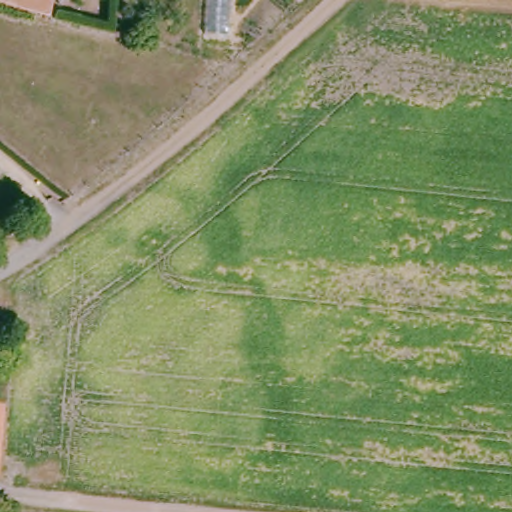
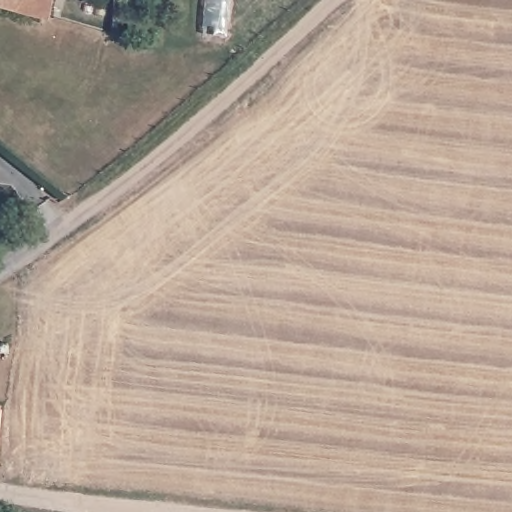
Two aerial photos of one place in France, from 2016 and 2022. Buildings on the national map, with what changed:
unchanged [(0,2),(0,0),(51,0),(47,15),(0,2)]
unchanged [(205,33),(207,0),(230,0),(228,35),(205,33)]
unchanged [(5,411),(4,422),(0,469),(0,410),(5,411)]

